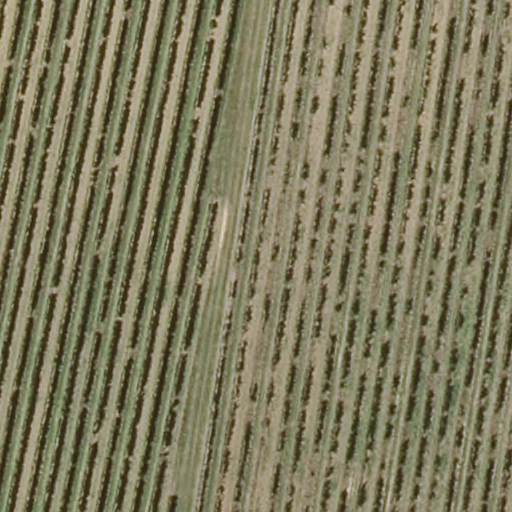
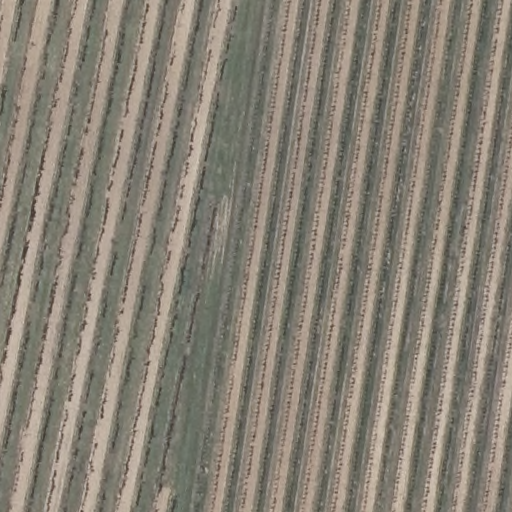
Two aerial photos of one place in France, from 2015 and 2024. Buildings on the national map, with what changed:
[]

